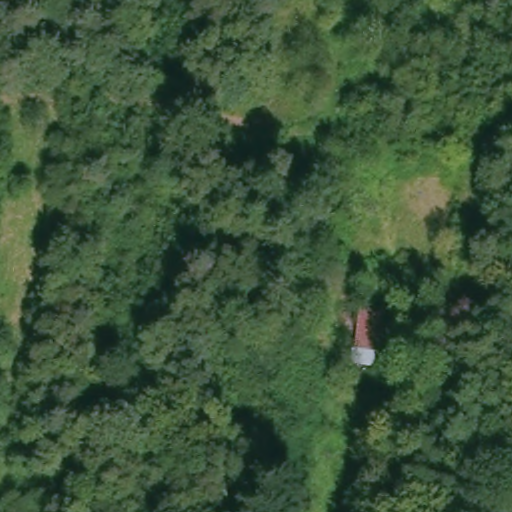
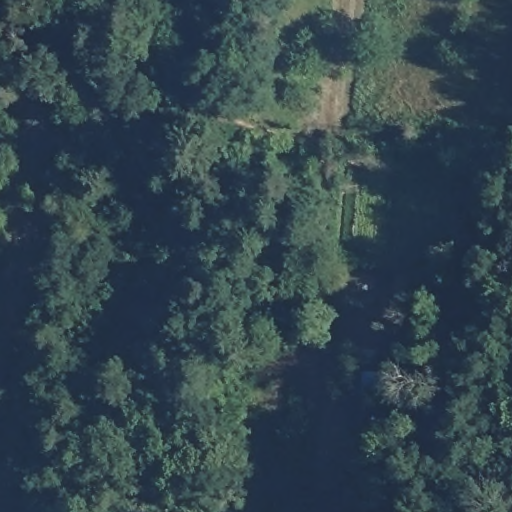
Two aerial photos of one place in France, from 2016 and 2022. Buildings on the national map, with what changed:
unchanged [(383,309),(378,368),(348,364),(354,308),(383,309)]

